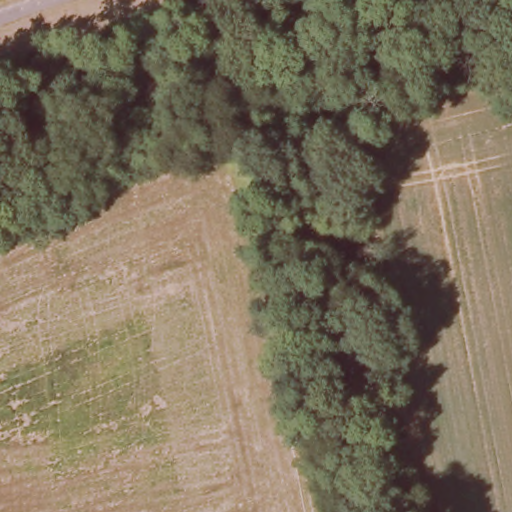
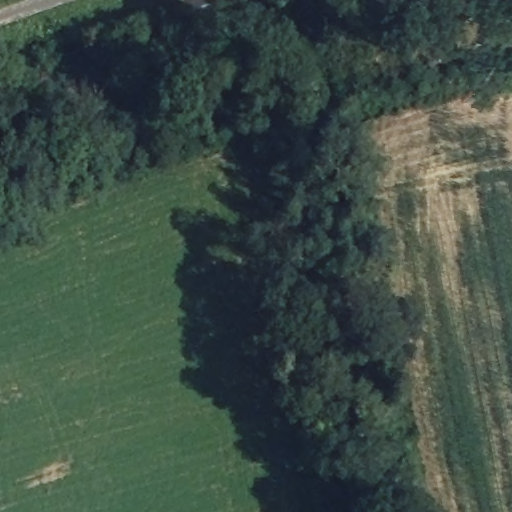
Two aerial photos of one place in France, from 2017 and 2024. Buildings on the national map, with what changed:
unchanged [(179,3),(180,0),(221,0),(222,5),(179,15),(179,3)]

